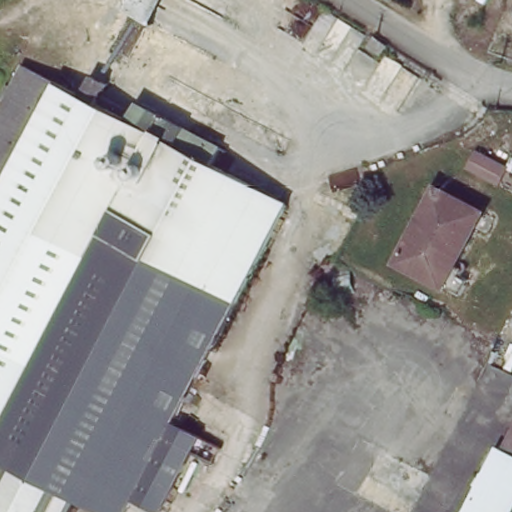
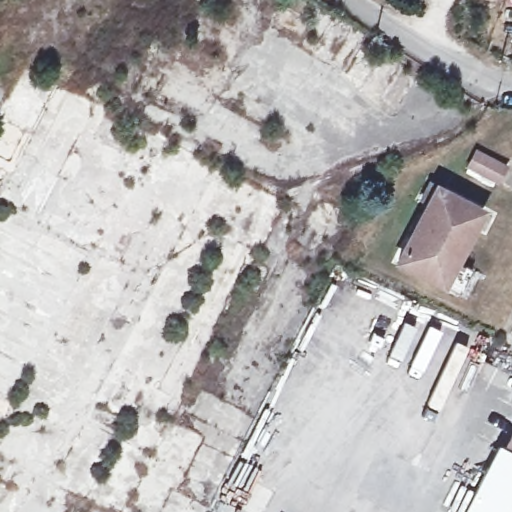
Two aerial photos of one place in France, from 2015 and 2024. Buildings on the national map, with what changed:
unchanged [(387,58),(363,47),(372,30),(382,36),(393,43),(387,58)]
demolished [(1,192),(0,192),(0,111),(24,65),(82,95),(96,74),(111,81),(100,99),(140,121),(148,107),(221,146),(212,162),(292,201),(174,421),(201,436),(198,442),(195,448),(174,488),(148,475),(128,512),(103,512),(76,497),(10,462),(0,457),(0,193),(1,192)]
unchanged [(496,179),(473,166),(480,154),(503,166),(496,179)]
unchanged [(454,270),(462,273),(454,288),(401,263),(436,188),(482,212),(454,270)]
unchanged [(503,457),(512,438),(512,512),(464,512),(495,453),(503,457)]

